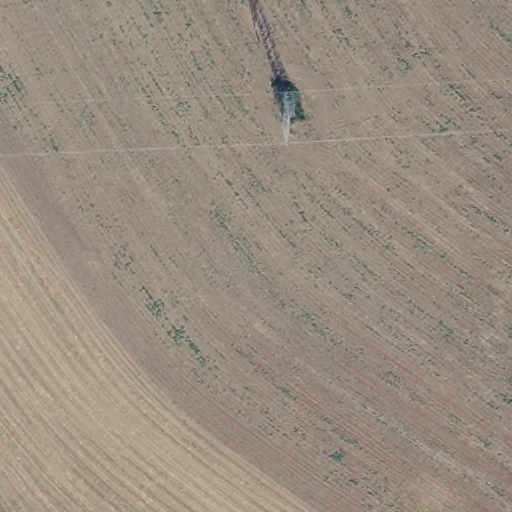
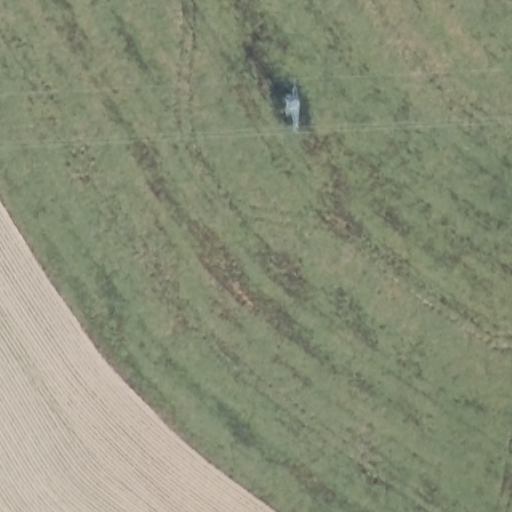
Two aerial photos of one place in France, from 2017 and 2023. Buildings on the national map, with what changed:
unchanged [(297,92),(298,120),(285,119),(284,92),(297,92)]

